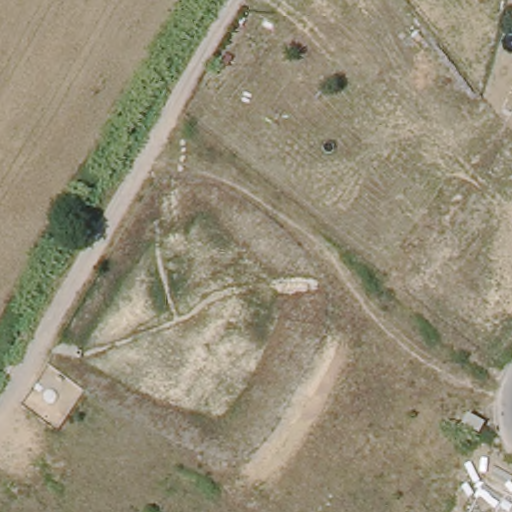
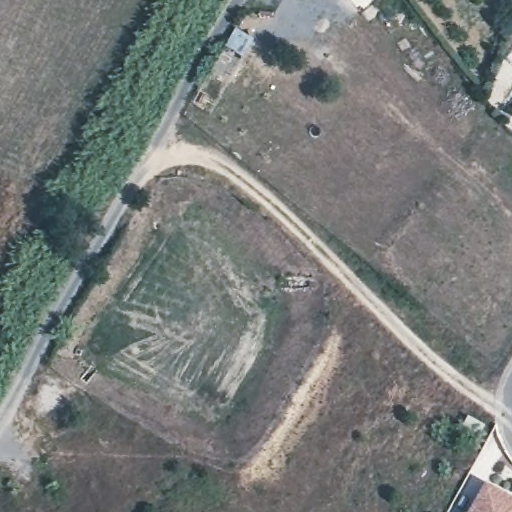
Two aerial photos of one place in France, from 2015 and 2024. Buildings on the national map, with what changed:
new [(487,482),(512,495),(512,512),(471,512),(487,482)]

